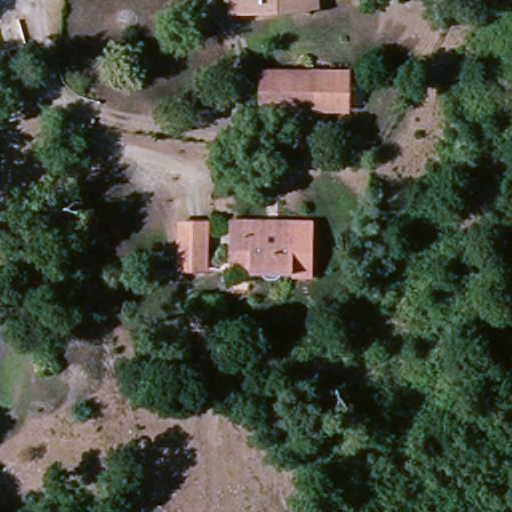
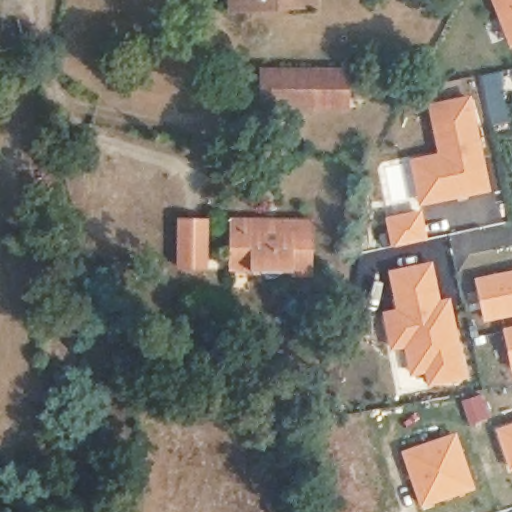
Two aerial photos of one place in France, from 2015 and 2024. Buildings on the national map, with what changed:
unchanged [(232,0),(248,0),(249,2),(257,0),(291,0),(292,6),(238,20),(232,0)]
unchanged [(249,2),(248,0),(257,0),(249,2)]
unchanged [(292,6),(291,0),(317,0),(292,6)]
new [(512,39),(508,40),(492,0),(512,0),(512,39)]
unchanged [(263,106),(263,73),(344,73),(344,105),(308,105),(263,106)]
new [(428,104),(471,95),(491,192),(419,205),(409,159),(437,153),(428,104)]
new [(421,210),(428,239),(392,247),(386,217),(421,210)]
unchanged [(254,264),(254,252),(231,252),(232,219),(307,219),(307,264),(294,263),(254,264)]
unchanged [(182,267),(182,257),(182,221),(208,220),(207,258),(208,266),(182,267)]
unchanged [(254,252),(254,264),(294,263),(294,277),(230,276),(231,252),(254,252)]
new [(433,261),(440,299),(449,297),(467,379),(428,386),(425,374),(410,377),(404,348),(390,351),(382,311),(396,308),(388,270),(433,261)]
new [(475,277),(512,270),(512,316),(484,321),(475,277)]
unchanged [(226,328),(196,335),(192,302),(222,296),(226,328)]
new [(506,341),(512,340),(512,366),(511,366),(506,341)]
new [(497,429),(512,424),(512,471),(511,471),(497,429)]
new [(401,451),(457,433),(478,491),(420,508),(401,451)]

